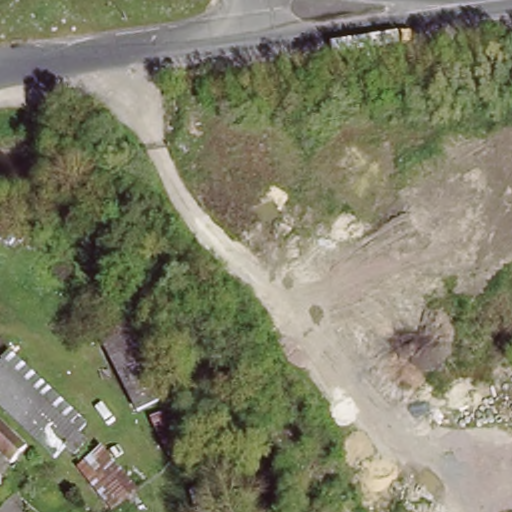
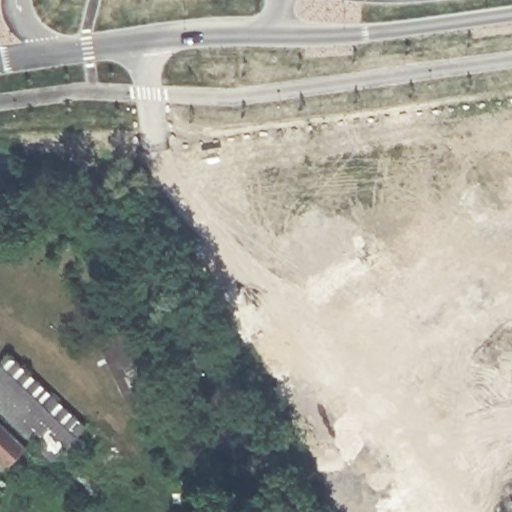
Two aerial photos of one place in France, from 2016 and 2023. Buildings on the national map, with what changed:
unchanged [(22,245),(15,241),(11,248),(0,241),(0,229),(4,224),(27,238),(22,245)]
unchanged [(130,329),(169,399),(140,415),(102,343),(130,329)]
unchanged [(77,436),(87,446),(75,459),(65,449),(54,461),(0,411),(0,367),(9,358),(84,428),(77,436)]
unchanged [(177,409),(196,453),(222,512),(189,512),(184,497),(150,421),(177,409)]
unchanged [(0,451),(0,422),(29,448),(15,464),(0,451)]
unchanged [(152,507),(146,512),(129,512),(122,504),(113,512),(111,512),(75,472),(102,448),(152,507)]

